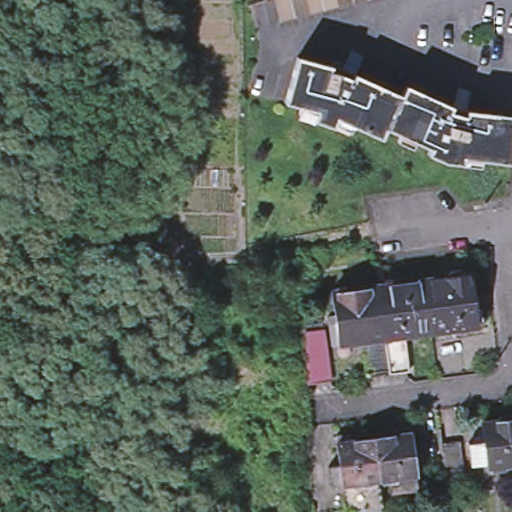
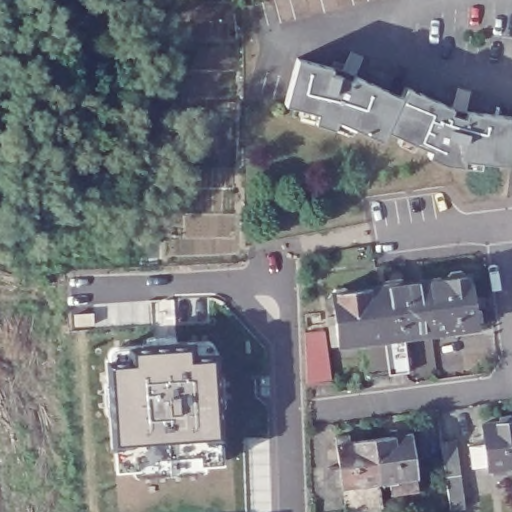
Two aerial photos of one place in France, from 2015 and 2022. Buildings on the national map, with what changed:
unchanged [(281,23),(275,0),(374,0),(281,23)]
unchanged [(297,58),(332,67),(330,72),(342,75),(352,80),(353,75),(399,96),(403,87),(450,108),(448,112),(462,117),(463,112),(512,119),(512,165),(467,160),(463,166),(445,163),(428,156),(430,150),(385,130),(382,139),(338,120),(334,128),(315,122),(318,113),(285,103),(297,58)]
unchanged [(429,282),(452,278),(453,277),(455,273),(465,271),(470,276),(475,276),(478,298),(485,297),(487,306),(479,307),(482,327),(436,333),(429,282)]
unchanged [(372,379),(367,342),(344,345),(335,346),(334,332),(332,318),(340,317),(340,311),(335,308),(334,297),(340,289),(350,288),(354,292),(382,288),(390,287),(389,282),(407,279),(407,285),(429,282),(436,333),(388,339),(390,345),(410,343),(410,348),(414,373),(393,376),(372,379)]
unchanged [(310,333),(328,331),(335,384),(312,387),(310,333)]
new [(115,447),(110,447),(105,361),(130,359),(129,346),(191,342),(192,352),(218,351),(222,439),(222,463),(204,464),(204,472),(137,478),(135,468),(115,468),(115,447)]
unchanged [(505,467),(506,472),(495,473),(495,468),(487,469),(486,465),(471,468),(468,446),(483,444),(480,426),(500,423),(499,418),(512,416),(512,422),(512,467),(505,467)]
unchanged [(391,495),(390,485),(382,485),(382,482),(379,482),(373,440),(390,438),(389,431),(410,428),(416,477),(418,491),(391,495)]
unchanged [(342,487),(330,488),(328,470),(340,468),(335,438),(355,435),(357,442),(373,440),(379,482),(377,482),(377,486),(355,489),(354,485),(342,487)]
unchanged [(459,443),(462,469),(445,471),(442,445),(459,443)]

